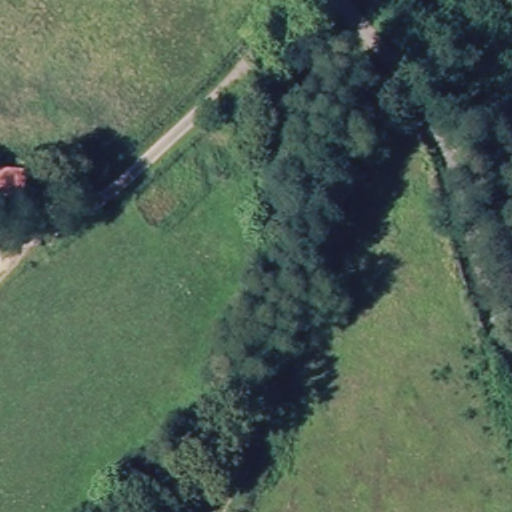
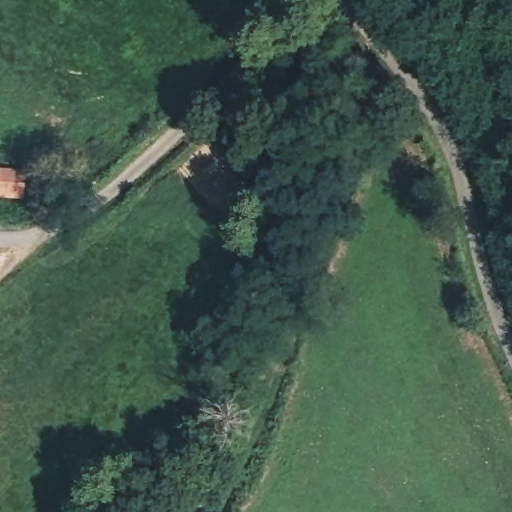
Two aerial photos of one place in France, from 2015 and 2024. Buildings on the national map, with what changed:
unchanged [(0,166),(29,167),(28,194),(0,193),(0,166)]

